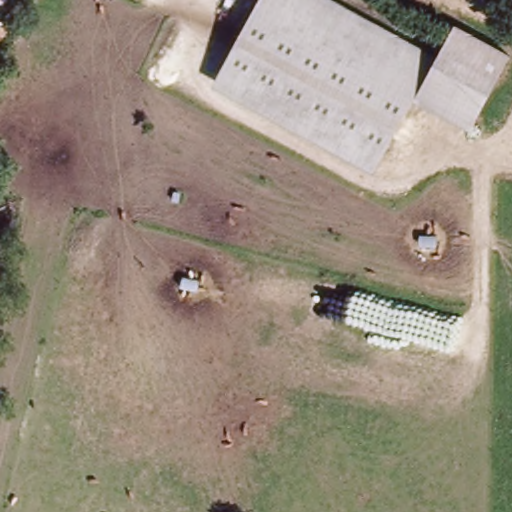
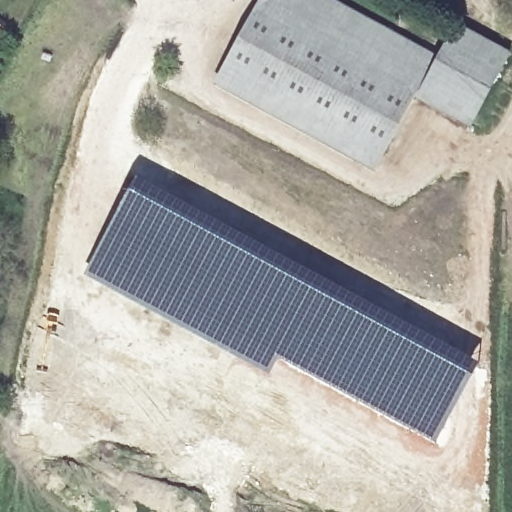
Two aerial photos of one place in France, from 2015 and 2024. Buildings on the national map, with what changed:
unchanged [(435,66),(382,163),(225,79),(267,0),(312,0),(435,66)]
unchanged [(435,66),(457,23),(512,52),(474,129),(417,100),(435,66)]
unchanged [(0,42),(0,29),(6,32),(0,42)]
new [(130,188),(335,301),(473,375),(435,442),(276,356),(268,370),(85,272),(130,188)]

